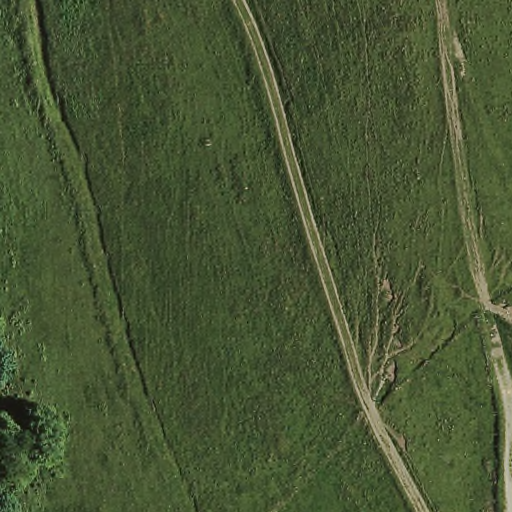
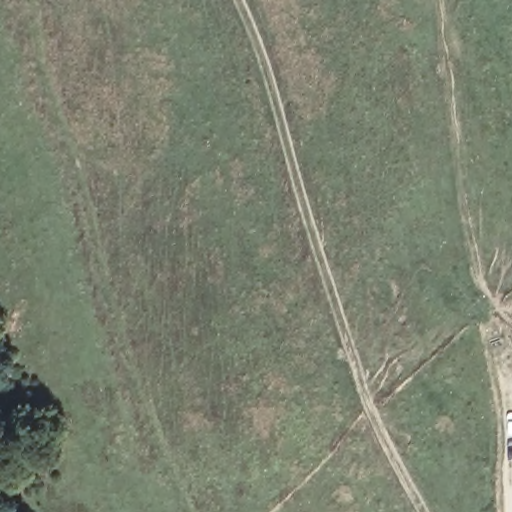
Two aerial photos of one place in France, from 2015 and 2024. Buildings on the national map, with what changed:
[]

